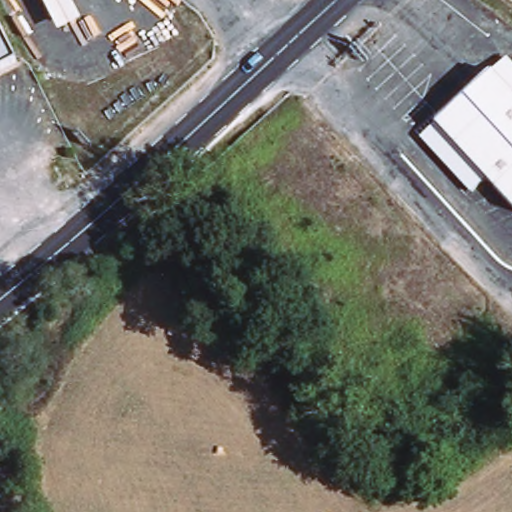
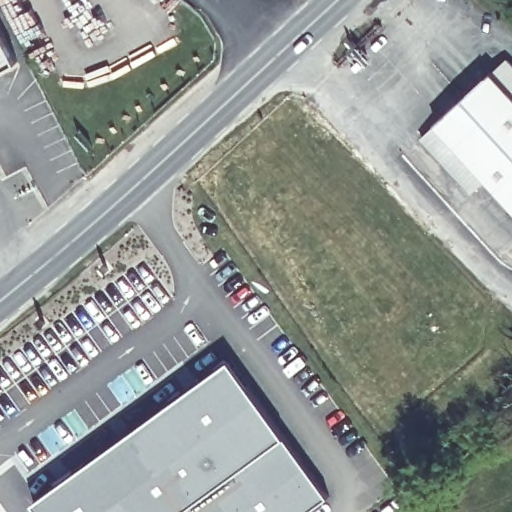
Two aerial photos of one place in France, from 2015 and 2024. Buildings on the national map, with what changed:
unchanged [(0,70),(0,31),(16,62),(0,70)]
unchanged [(435,122),(435,121),(490,69),(505,55),(512,63),(512,204),(487,177),(472,190),(421,135),(435,122)]
new [(230,357),(287,434),(330,496),(307,512),(40,512),(32,501),(230,357)]

